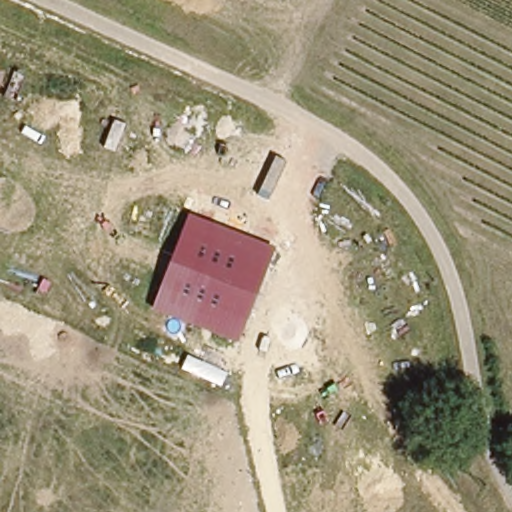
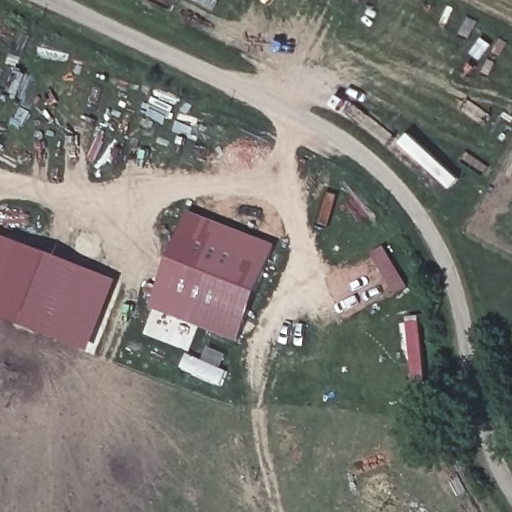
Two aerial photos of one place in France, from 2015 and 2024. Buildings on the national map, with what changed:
unchanged [(275,247),(240,342),(152,310),(189,215),(275,247)]
new [(0,318),(0,237),(120,282),(91,353),(0,318)]

